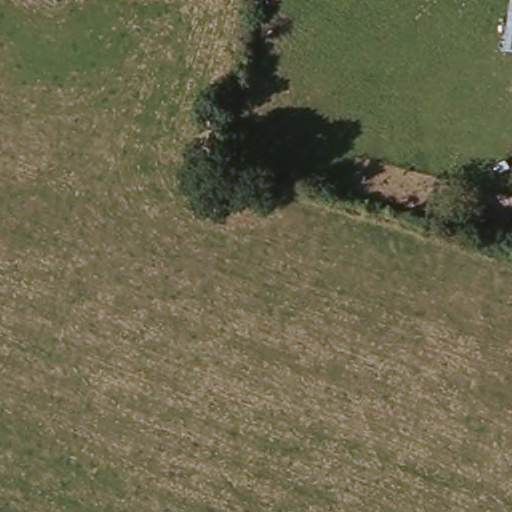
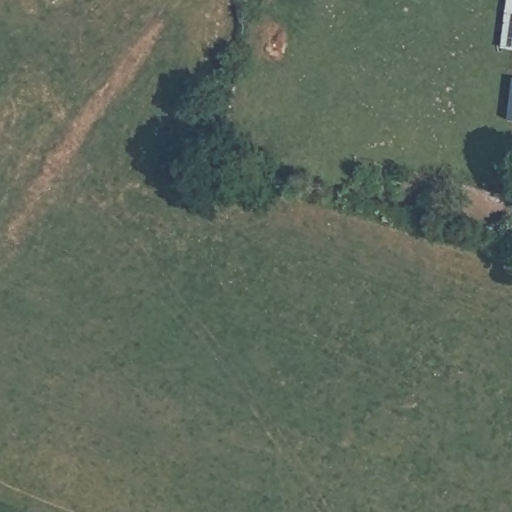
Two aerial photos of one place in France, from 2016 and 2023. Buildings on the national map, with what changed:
unchanged [(503,55),(505,4),(512,4),(512,55),(503,55)]

